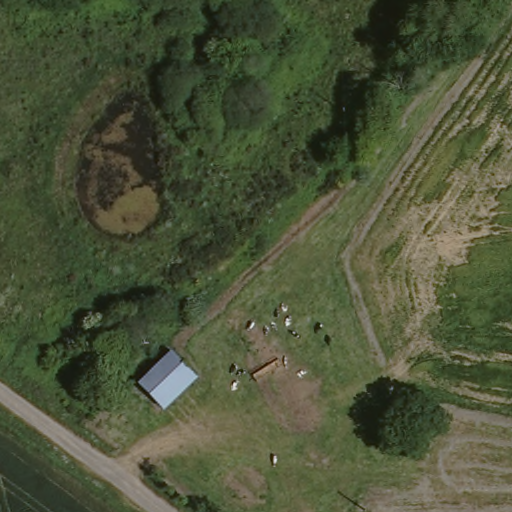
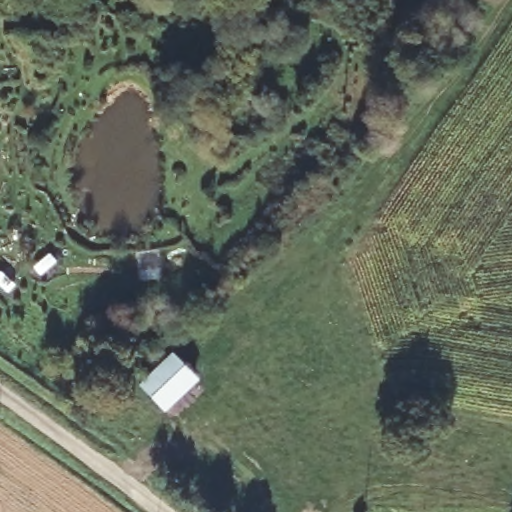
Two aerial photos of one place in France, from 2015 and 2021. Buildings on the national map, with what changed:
unchanged [(197,380),(165,410),(140,382),(172,353),(197,380)]

